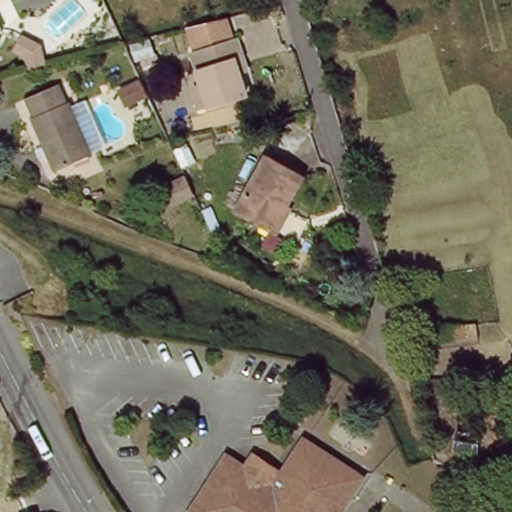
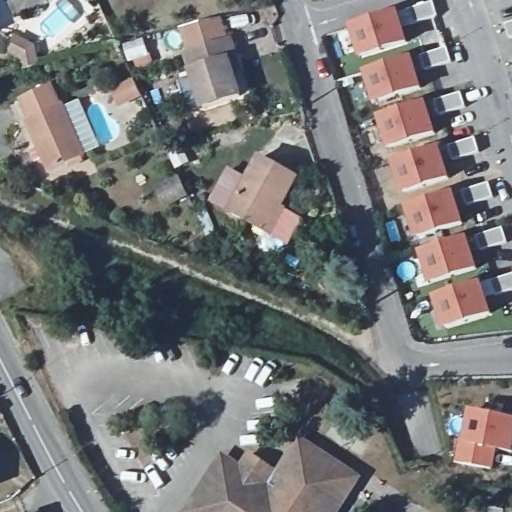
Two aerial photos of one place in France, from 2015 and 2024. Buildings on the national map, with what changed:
new [(395,8),(407,41),(359,57),(348,24),(395,8)]
unchanged [(0,30),(0,19),(5,28),(0,30)]
unchanged [(186,85),(197,81),(189,56),(193,54),(185,29),(221,22),(228,42),(231,40),(238,60),(243,73),(234,76),(240,97),(206,109),(196,113),(186,85)]
new [(25,33),(42,44),(48,62),(33,66),(29,54),(16,46),(25,33)]
unchanged [(124,45),(145,40),(148,57),(128,62),(124,45)]
new [(409,53),(420,87),(372,102),(361,70),(409,53)]
unchanged [(64,105),(68,105),(90,158),(53,174),(30,119),(33,117),(23,99),(55,85),(64,105)]
new [(422,99),(434,132),(386,148),(375,115),(422,99)]
new [(437,144),(449,178),(401,193),(390,161),(437,144)]
unchanged [(272,238),(235,217),(267,159),(304,180),(272,238)]
unchanged [(191,194),(170,203),(162,186),(183,176),(191,194)]
new [(451,189),(463,222),(415,238),(404,205),(451,189)]
new [(464,233),(475,266),(427,282),(416,249),(464,233)]
new [(476,279),(487,313),(439,328),(428,296),(476,279)]
demolished [(494,339),(423,349),(419,333),(492,323),(494,339)]
new [(512,417),(512,445),(509,464),(453,452),(462,407),(512,417)]
demolished [(478,457),(452,453),(455,435),(481,439),(478,457)]
unchanged [(230,461),(286,500),(297,484),(284,475),(306,444),(362,480),(341,512),(196,512),(230,461)]

